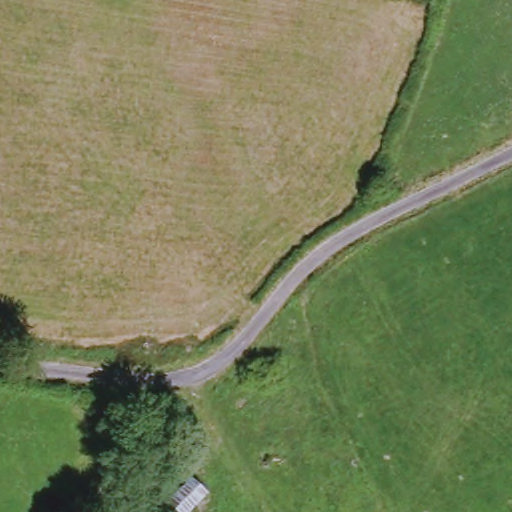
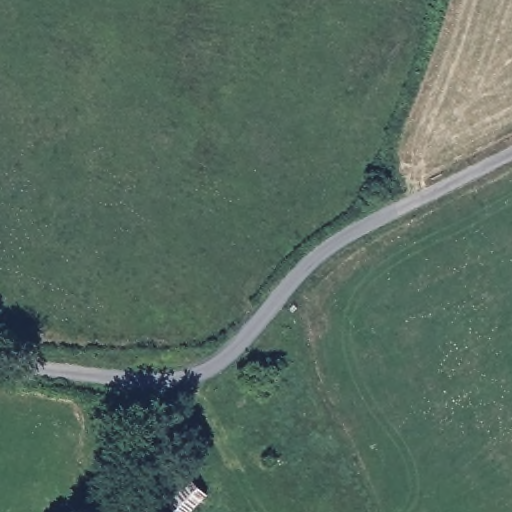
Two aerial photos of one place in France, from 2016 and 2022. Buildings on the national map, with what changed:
unchanged [(212,498),(201,512),(173,512),(196,486),(212,498)]

